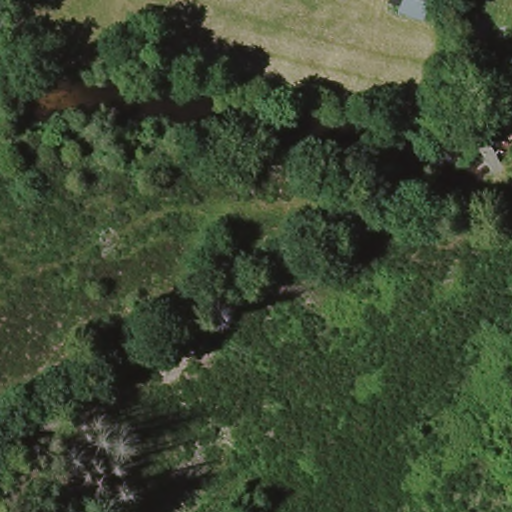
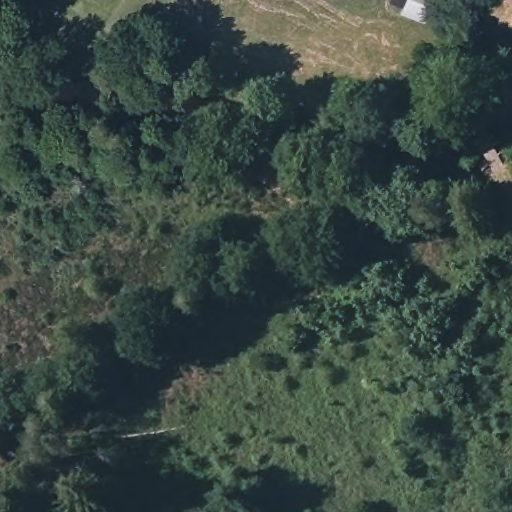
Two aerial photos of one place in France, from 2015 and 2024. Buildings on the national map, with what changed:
unchanged [(407,0),(434,0),(428,17),(403,8),(407,0)]

